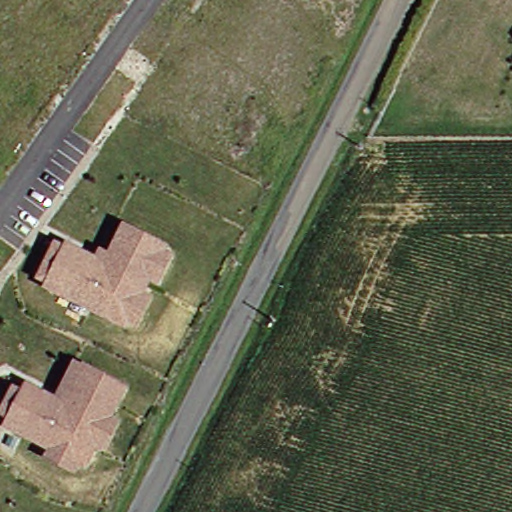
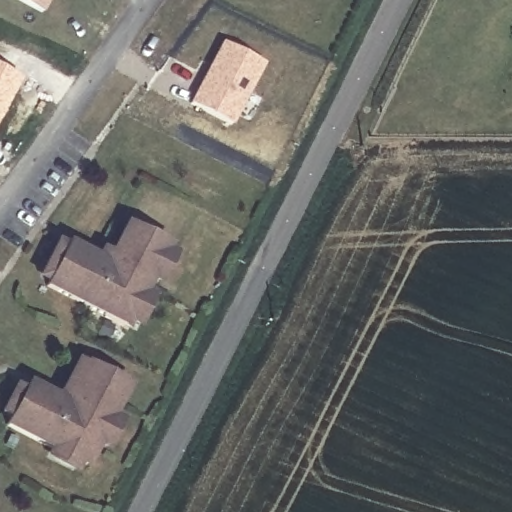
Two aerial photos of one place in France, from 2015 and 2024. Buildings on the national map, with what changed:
new [(15,0),(44,0),(38,12),(15,0)]
new [(220,42),(259,63),(228,124),(188,103),(220,42)]
new [(0,119),(0,67),(22,78),(0,119)]
unchanged [(44,279),(68,238),(96,253),(100,244),(109,250),(126,219),(165,242),(123,320),(44,279)]
unchanged [(11,417),(34,377),(61,392),(68,383),(75,389),(91,360),(132,382),(89,460),(11,417)]

